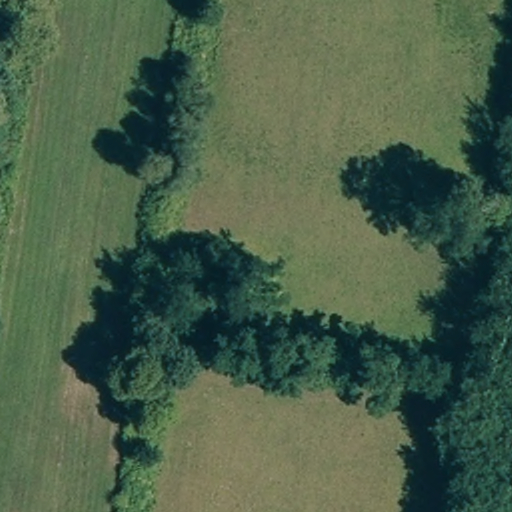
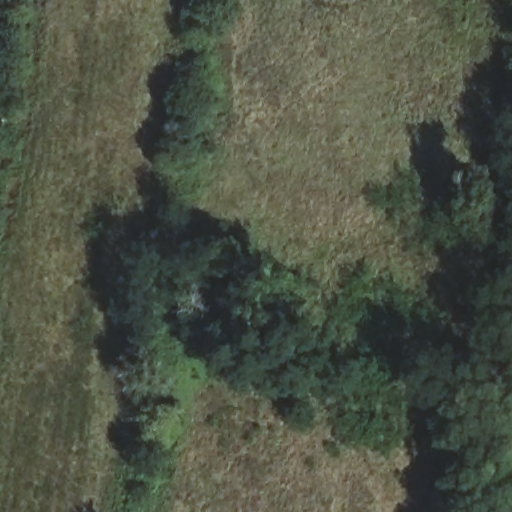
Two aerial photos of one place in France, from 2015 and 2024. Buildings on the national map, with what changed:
unchanged [(235,310),(232,331),(202,327),(201,343),(183,340),(188,306),(235,310)]

